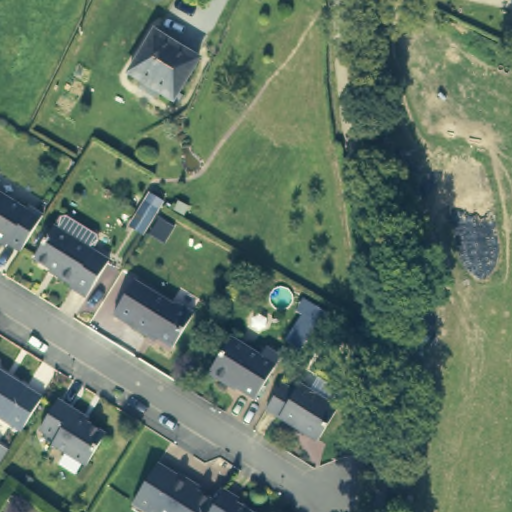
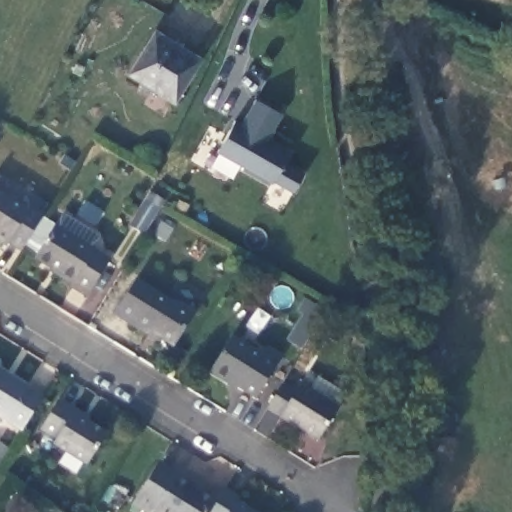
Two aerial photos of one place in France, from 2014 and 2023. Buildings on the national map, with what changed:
unchanged [(125,74),(150,34),(194,60),(172,96),(145,80),(142,85),(125,74)]
new [(236,120),(242,124),(255,100),(283,115),(270,139),(290,151),(270,185),(216,153),(236,120)]
unchanged [(20,253),(8,246),(6,249),(0,246),(0,196),(26,212),(29,209),(42,217),(20,253)]
unchanged [(125,228),(140,204),(144,196),(156,204),(152,210),(137,235),(125,228)]
unchanged [(84,304),(68,294),(69,291),(54,281),(55,280),(31,263),(50,232),(56,222),(61,221),(91,241),(92,246),(86,255),(106,268),(84,304)]
unchanged [(169,301),(176,302),(192,312),(171,345),(148,331),(146,335),(113,313),(134,280),(169,301)]
new [(302,316),(295,311),(304,298),(331,315),(307,355),(285,341),(302,316)]
unchanged [(277,357),(250,400),(228,386),(223,385),(206,375),(228,340),(257,356),(262,348),(277,357)]
unchanged [(19,432),(0,421),(0,374),(40,398),(19,432)]
unchanged [(265,411),(280,387),(292,395),(298,387),(314,397),(322,385),(343,398),(335,410),(315,442),(265,411)]
unchanged [(86,466),(53,445),(55,441),(40,431),(58,402),(73,412),(72,415),(105,434),(86,466)]
unchanged [(152,512),(147,512),(133,503),(156,463),(176,475),(174,478),(214,503),(209,512),(156,512),(153,510),(152,512)]
unchanged [(235,500),(254,512),(209,512),(214,503),(216,500),(223,488),(237,497),(235,500)]

